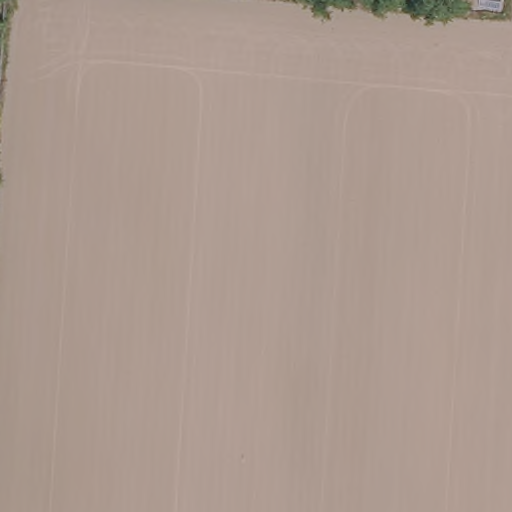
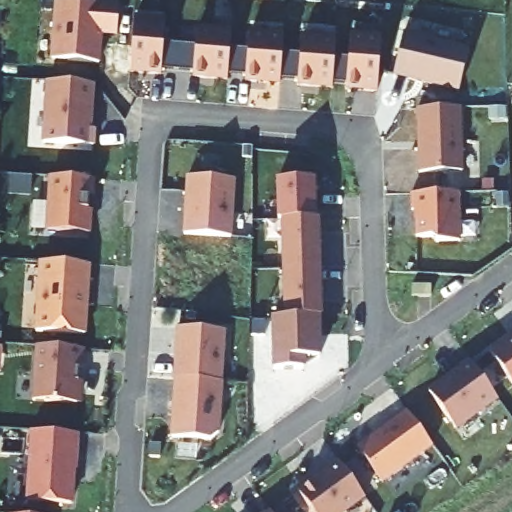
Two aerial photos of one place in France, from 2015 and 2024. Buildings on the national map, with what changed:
new [(57,2),(120,7),(118,36),(102,34),(100,65),(53,61),(57,2)]
new [(135,21),(166,23),(162,76),(131,74),(135,21)]
new [(194,78),(197,32),(232,35),(228,81),(194,78)]
new [(395,76),(405,35),(470,51),(460,92),(395,76)]
new [(246,83),(250,36),(285,39),(280,85),(246,83)]
new [(346,91),(351,36),(381,39),(377,93),(346,91)]
new [(298,87),(302,40),(336,43),(333,89),(298,87)]
new [(92,131),(96,131),(95,148),(45,145),(48,83),(95,86),(92,131)]
new [(461,109),(463,173),(420,174),(418,110),(461,109)]
new [(96,181),(95,198),(91,198),(90,212),(92,212),(91,235),(48,233),(52,178),(96,181)]
new [(190,178),(235,181),(232,239),(186,236),(190,178)]
new [(279,222),(278,182),(315,181),(315,221),(279,222)]
new [(416,239),(415,211),(411,211),(411,195),(457,194),(458,243),(436,243),(431,238),(416,239)]
new [(318,221),(319,252),(320,251),(321,269),(285,270),(282,222),(318,221)]
new [(86,336),(37,332),(42,263),(90,266),(86,336)]
new [(321,269),(322,287),(320,287),(321,318),(286,319),(285,270),(321,269)]
new [(433,289),(434,300),(415,302),(414,291),(433,289)]
new [(306,358),(306,371),(272,371),(269,320),(286,319),(319,318),(321,318),(321,359),(306,358)]
new [(180,329),(225,332),(222,383),(176,380),(180,329)]
new [(490,353),(511,337),(512,338),(512,383),(490,353)]
new [(85,369),(80,368),(78,404),(35,402),(38,347),(86,350),(85,369)]
new [(497,399),(455,429),(430,393),(445,381),(449,382),(459,375),(457,372),(471,363),(497,399)]
new [(223,383),(220,433),(211,440),(173,438),(177,380),(223,383)]
new [(433,446),(382,483),(357,447),(407,410),(433,446)]
new [(32,432),(79,435),(77,471),(72,470),(72,481),(74,483),(72,505),(28,502),(32,432)]
new [(327,473),(325,471),(339,461),(365,497),(345,512),(314,512),(298,491),(315,479),(318,479),(327,473)]
new [(269,512),(270,511),(271,512),(269,512)]

